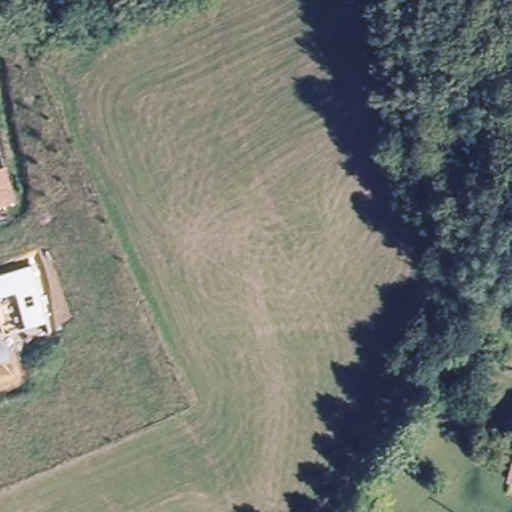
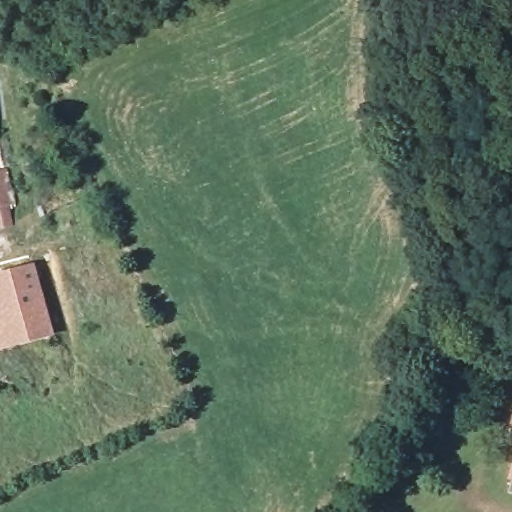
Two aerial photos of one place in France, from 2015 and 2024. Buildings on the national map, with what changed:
unchanged [(16,199),(0,204),(0,170),(7,168),(16,199)]
new [(48,321),(5,333),(0,313),(0,273),(33,264),(48,321)]
new [(48,321),(51,332),(0,346),(0,313),(5,333),(48,321)]
unchanged [(507,476),(512,460),(512,478),(507,476)]

